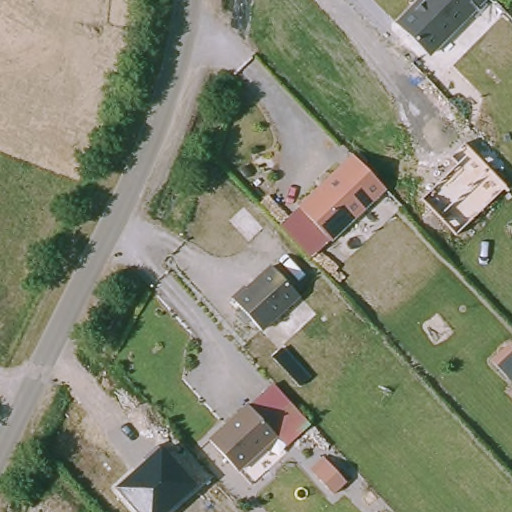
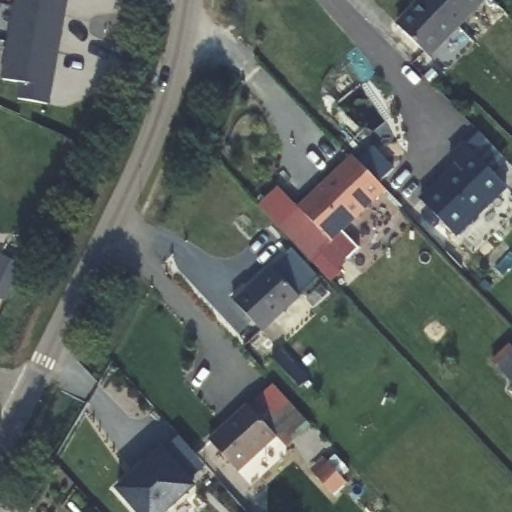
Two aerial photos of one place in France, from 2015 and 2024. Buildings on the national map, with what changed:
new [(22,84),(3,80),(18,0),(65,0),(46,101),(18,99),(22,84)]
unchanged [(418,0),(485,0),(427,56),(394,21),(418,0)]
unchanged [(507,189),(456,236),(422,200),(459,165),(451,156),(464,143),(507,189)]
unchanged [(296,206),(354,155),(385,191),(330,242),(296,206)]
unchanged [(301,211),(330,242),(311,260),(279,226),(298,209),(301,211)]
new [(293,249),(319,279),(299,298),(272,266),(293,249)]
new [(0,297),(0,254),(24,266),(6,300),(0,297)]
unchanged [(231,298),(272,266),(299,298),(261,332),(231,298)]
unchanged [(274,383),(313,425),(288,446),(276,436),(250,408),(248,406),(274,383)]
unchanged [(208,441),(248,406),(276,436),(238,473),(208,441)]
new [(164,447),(179,431),(204,458),(190,473),(164,447)]
unchanged [(163,447),(198,490),(170,512),(137,512),(115,488),(163,447)]

